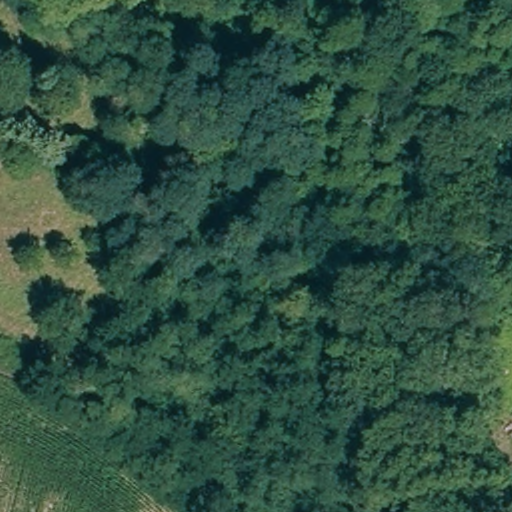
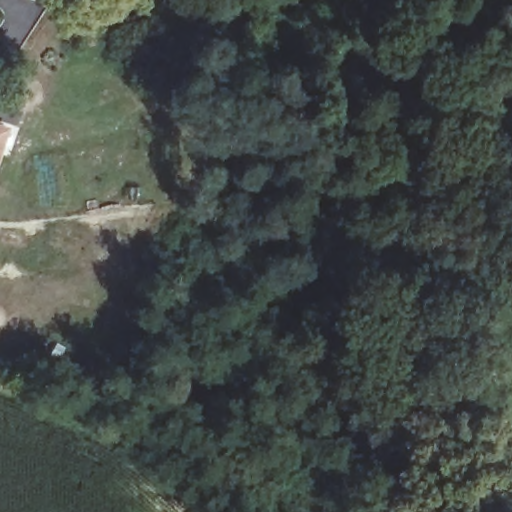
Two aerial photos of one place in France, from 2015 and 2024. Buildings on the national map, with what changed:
new [(0,162),(0,123),(11,127),(0,162)]

